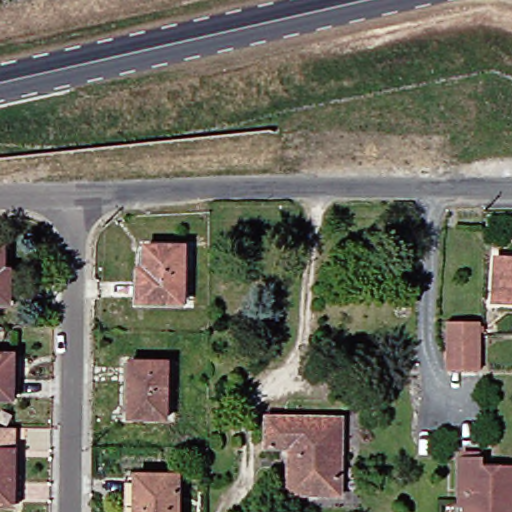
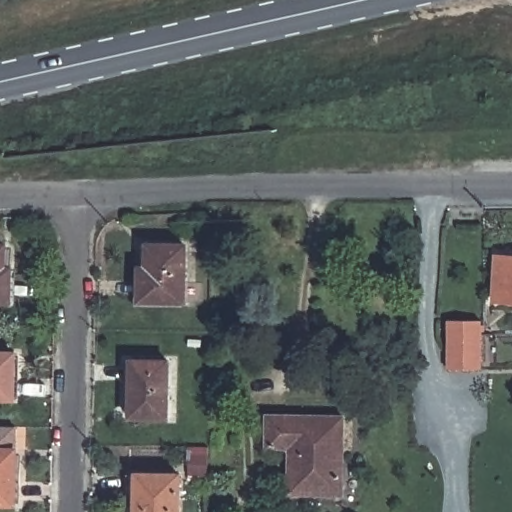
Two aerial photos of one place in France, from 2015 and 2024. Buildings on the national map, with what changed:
unchanged [(186,246),(185,303),(139,302),(140,268),(147,268),(148,245),(186,246)]
unchanged [(5,246),(5,268),(12,269),(11,301),(0,301),(0,246),(5,246)]
unchanged [(512,300),(495,299),(497,257),(512,259),(512,300)]
unchanged [(481,368),(448,367),(448,363),(450,319),(482,320),(481,362),(481,368)]
unchanged [(20,354),(20,398),(0,398),(0,354),(20,354)]
unchanged [(167,418),(131,417),(132,361),(168,362),(167,418)]
unchanged [(347,418),(346,493),(295,492),(295,447),(273,447),(273,417),(347,418)]
unchanged [(15,422),(15,500),(0,500),(0,422),(15,422)]
demolished [(512,508),(502,508),(502,512),(468,512),(468,504),(461,504),(462,458),(483,458),(483,466),(512,466),(512,508)]
unchanged [(137,512),(138,475),(179,475),(178,512),(137,512)]

